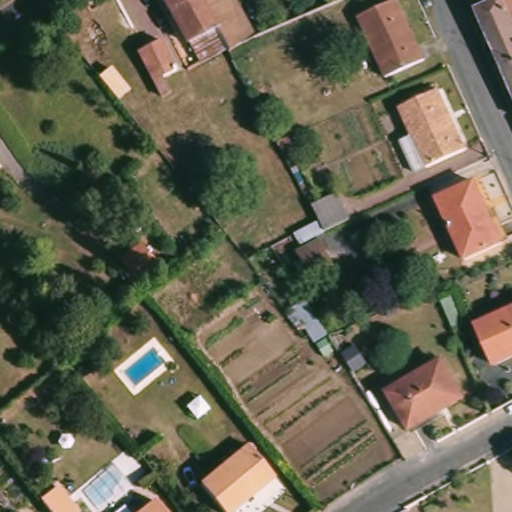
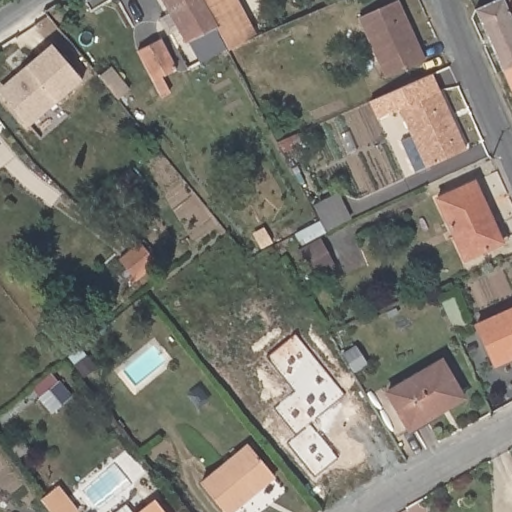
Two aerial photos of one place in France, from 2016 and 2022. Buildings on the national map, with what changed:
unchanged [(205,14),(213,29),(217,38),(189,53),(159,0),(198,0),(203,9),(205,14)]
unchanged [(237,47),(236,48),(225,53),(221,44),(217,38),(213,29),(205,14),(203,9),(198,0),(231,0),(252,42),(250,43),(237,47)]
unchanged [(470,13),(497,0),(512,0),(512,66),(497,73),(470,13)]
unchanged [(399,1),(426,61),(388,77),(362,18),(399,1)]
unchanged [(156,40),(173,72),(151,83),(134,51),(156,40)]
new [(0,92),(0,88),(26,66),(52,45),(82,80),(57,101),(28,126),(0,92)]
unchanged [(512,66),(512,106),(497,73),(512,66)]
unchanged [(405,138),(418,132),(407,107),(444,90),(470,148),(432,165),(419,171),(405,138)]
unchanged [(512,121),(512,124),(511,121),(512,121)]
unchanged [(475,185),(502,245),(466,262),(438,201),(475,185)]
unchanged [(310,276),(296,250),(302,247),(295,233),(320,220),(313,206),(339,193),(351,218),(320,236),(335,264),(310,276)]
unchanged [(158,263),(131,285),(121,277),(127,270),(120,260),(141,241),(158,263)]
unchanged [(340,348),(325,358),(293,308),(307,299),(340,348)]
unchanged [(512,356),(490,366),(471,325),(512,306),(512,356)]
unchanged [(368,365),(355,373),(342,353),(357,344),(368,365)]
unchanged [(440,360),(463,398),(409,429),(386,392),(440,360)]
unchanged [(244,449),(270,481),(232,512),(219,512),(199,486),(244,449)]
new [(56,486),(77,511),(76,512),(52,512),(41,499),(56,486)]
unchanged [(153,501),(163,512),(139,512),(153,501)]

